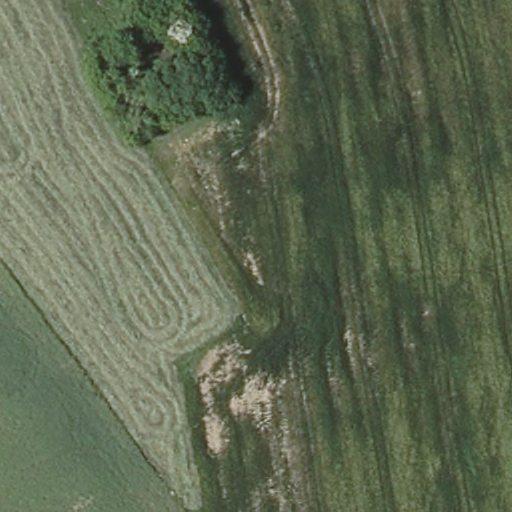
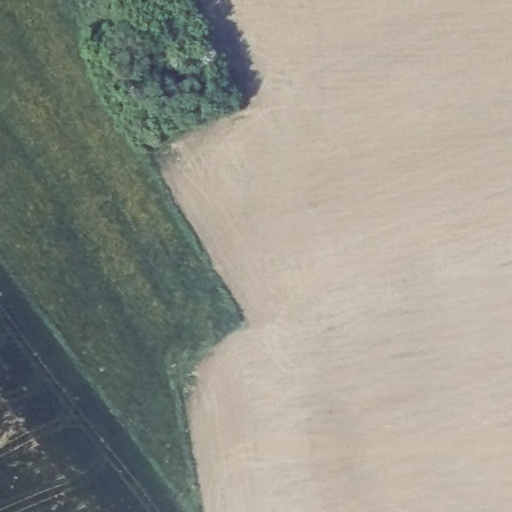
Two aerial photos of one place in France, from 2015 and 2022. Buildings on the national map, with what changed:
unchanged [(186,65),(133,86),(117,49),(170,26),(186,65)]

